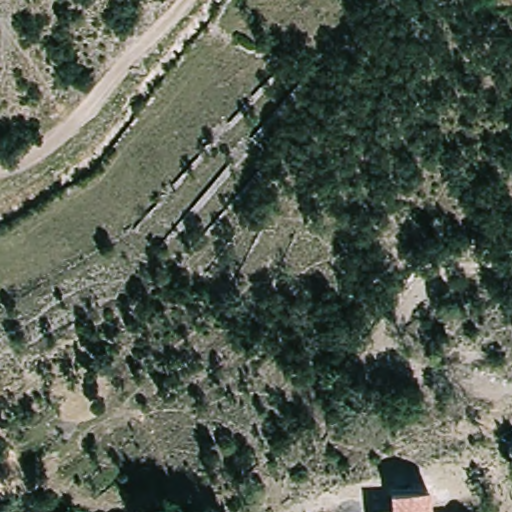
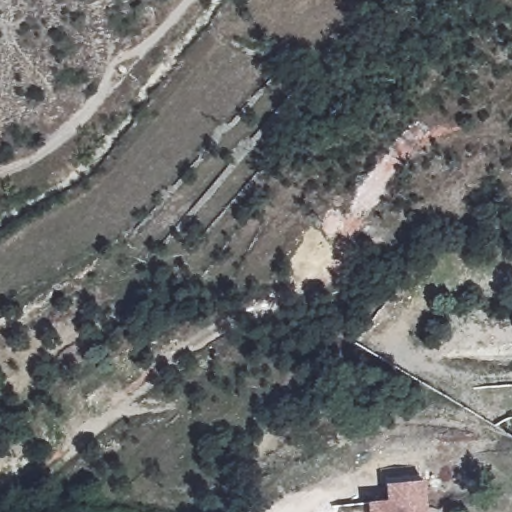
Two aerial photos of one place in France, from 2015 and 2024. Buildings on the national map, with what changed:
unchanged [(427,512),(370,512),(369,502),(387,500),(385,484),(424,480),(427,512)]

